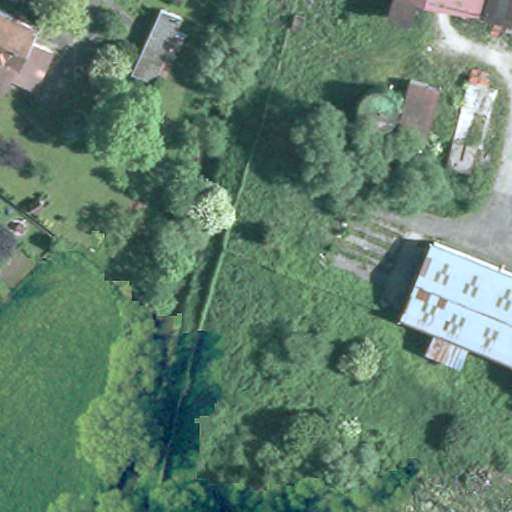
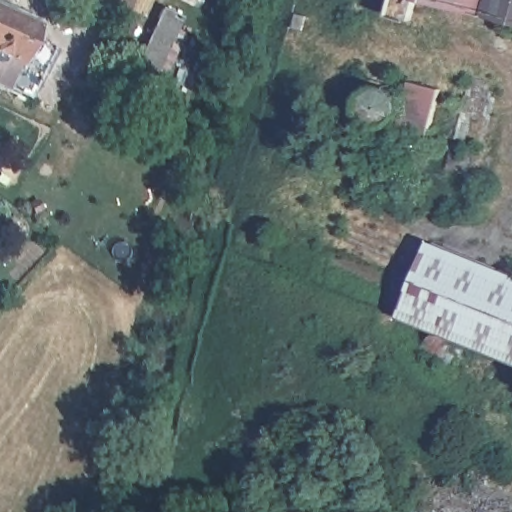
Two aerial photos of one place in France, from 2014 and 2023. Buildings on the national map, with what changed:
unchanged [(385,12),(389,0),(415,0),(410,19),(385,12)]
unchanged [(512,0),(512,19),(438,0),(512,0)]
unchanged [(25,36),(50,47),(41,67),(14,55),(7,71),(0,68),(0,4),(33,20),(25,36)]
unchanged [(184,17),(155,79),(148,76),(135,71),(165,9),(177,14),(184,17)]
unchanged [(437,87),(422,147),(390,140),(406,79),(437,87)]
unchanged [(394,91),(397,99),(397,107),(395,113),(390,119),(381,124),(372,123),(364,118),(360,112),(357,104),(358,97),(365,87),(369,85),(379,83),(387,85),(394,91)]
unchanged [(512,361),(399,315),(430,240),(512,273),(512,361)]

